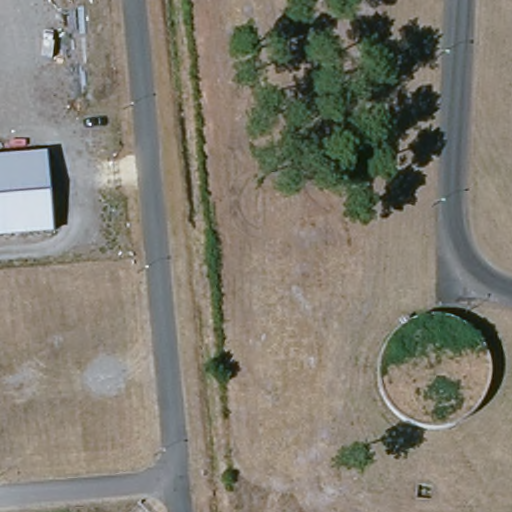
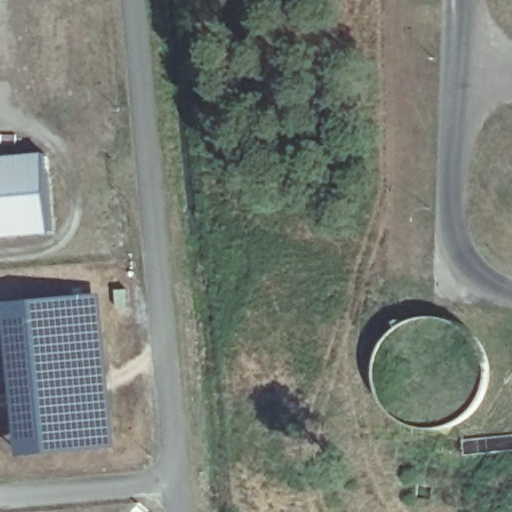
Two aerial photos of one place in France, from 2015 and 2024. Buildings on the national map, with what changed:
unchanged [(51,234),(0,238),(0,159),(44,154),(51,234)]
new [(101,293),(116,447),(22,457),(5,302),(101,293)]

